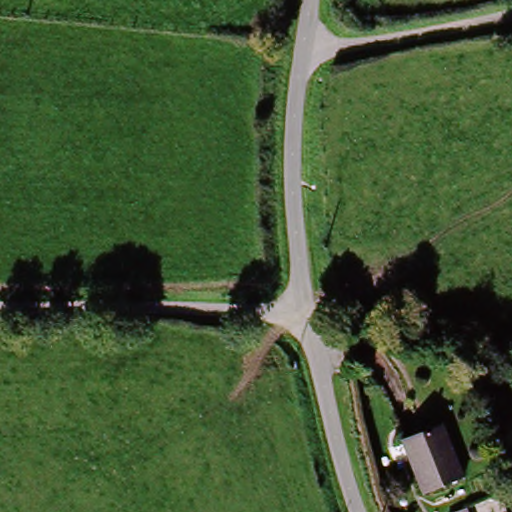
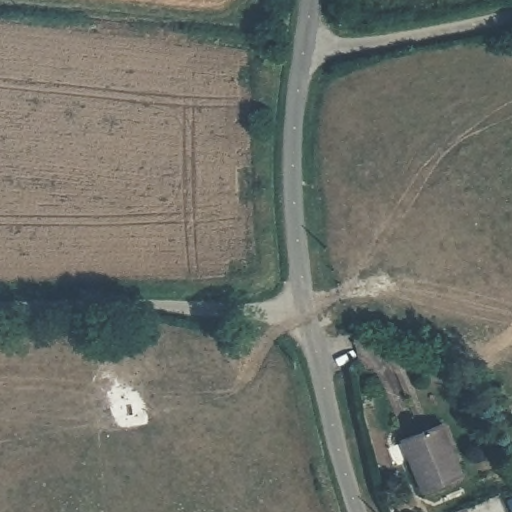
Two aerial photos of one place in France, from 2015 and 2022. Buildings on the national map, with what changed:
unchanged [(419,499),(397,451),(441,430),(464,478),(419,499)]

